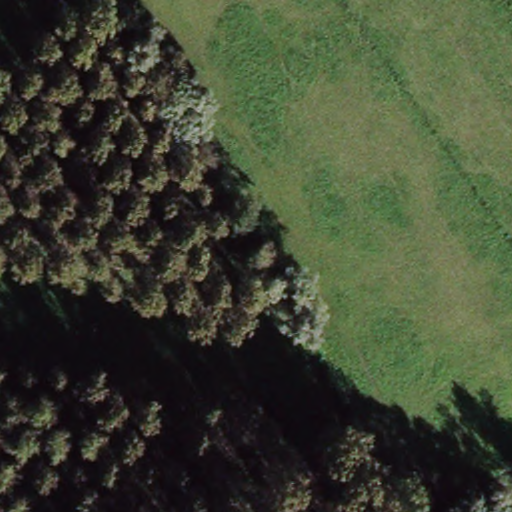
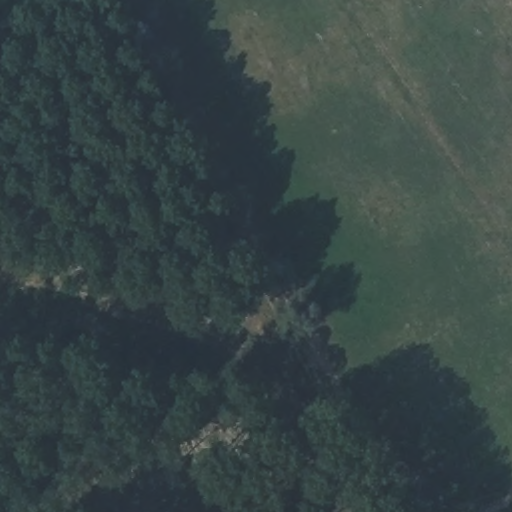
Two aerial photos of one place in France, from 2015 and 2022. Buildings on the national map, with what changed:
[]

